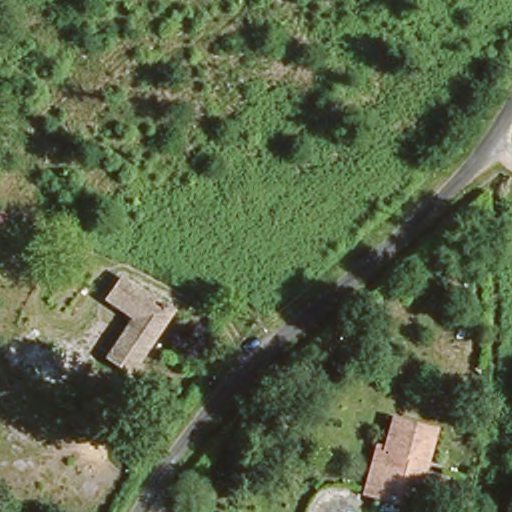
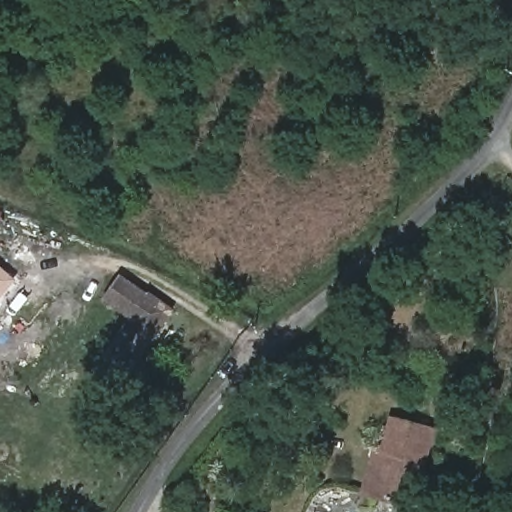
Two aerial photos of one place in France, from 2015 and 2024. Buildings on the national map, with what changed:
unchanged [(0,222),(0,208),(6,211),(0,222)]
new [(0,300),(0,265),(17,280),(0,300)]
unchanged [(132,369),(107,351),(145,293),(172,314),(132,369)]
unchanged [(437,512),(428,509),(421,506),(410,501),(411,497),(383,485),(371,480),(390,437),(395,440),(406,411),(438,425),(422,465),(434,470),(442,474),(455,480),(442,512),(437,512)]
unchanged [(65,465),(49,457),(61,434),(77,441),(65,465)]

